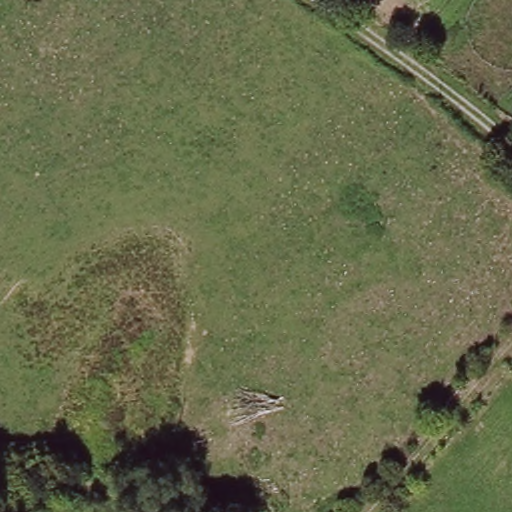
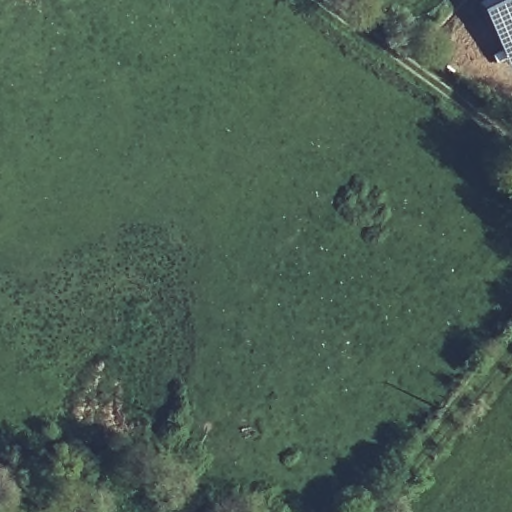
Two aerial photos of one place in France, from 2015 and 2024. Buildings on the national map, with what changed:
new [(502,0),(512,0),(512,72),(510,73),(480,11),(502,0)]

